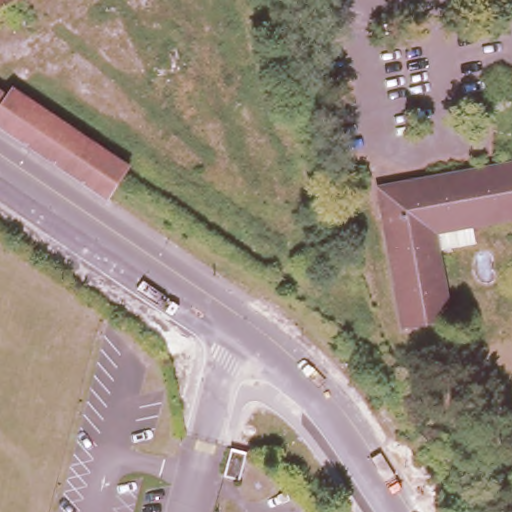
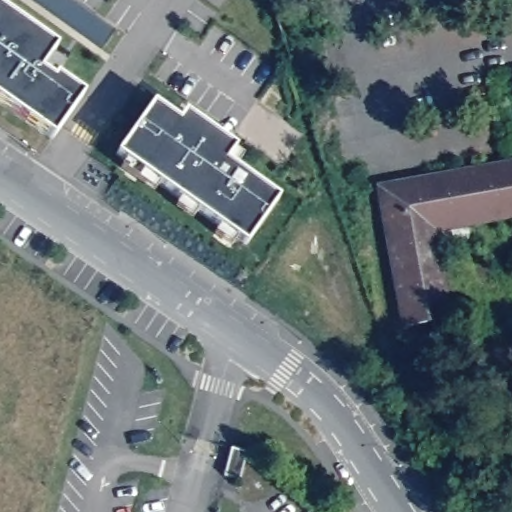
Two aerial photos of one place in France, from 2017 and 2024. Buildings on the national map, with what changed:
new [(113,31),(100,50),(30,0),(70,0),(113,31)]
new [(48,58),(62,68),(55,77),(82,96),(52,139),(0,103),(0,10),(55,48),(48,58)]
demolished [(215,43),(245,108),(176,140),(141,69),(215,43)]
demolished [(102,159),(108,151),(127,165),(115,182),(102,198),(0,129),(0,92),(4,95),(102,159)]
new [(177,120),(183,112),(235,149),(242,156),(233,167),(277,198),(244,245),(235,239),(230,246),(213,235),(218,226),(197,211),(192,219),(175,207),(179,199),(159,185),(153,193),(120,168),(125,160),(117,154),(152,103),(177,120)]
unchanged [(429,222),(445,311),(400,319),(375,180),(512,157),(512,207),(429,222)]
unchanged [(248,458),(240,484),(225,479),(232,454),(248,458)]

